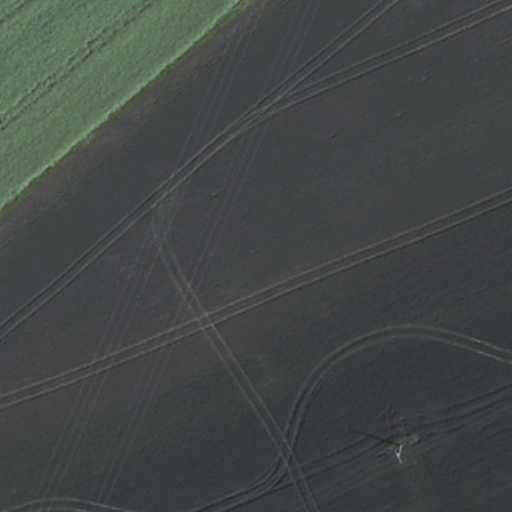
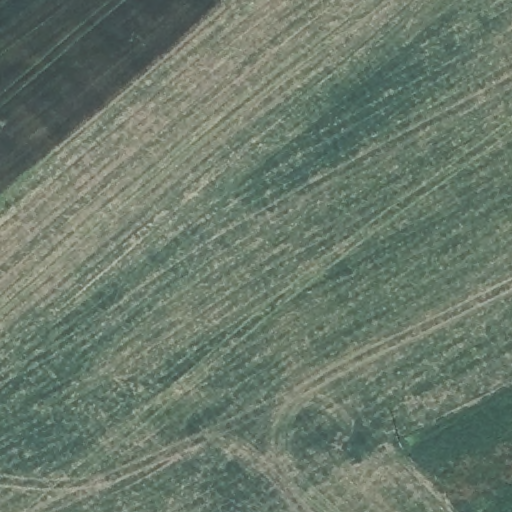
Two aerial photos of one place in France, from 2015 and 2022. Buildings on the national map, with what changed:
[]

